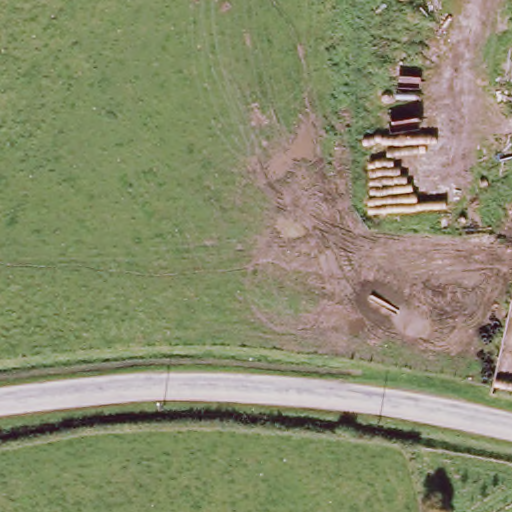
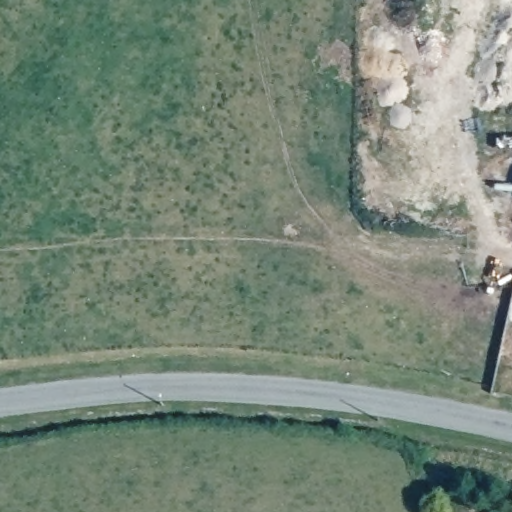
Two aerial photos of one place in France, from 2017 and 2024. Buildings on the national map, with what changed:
[]

